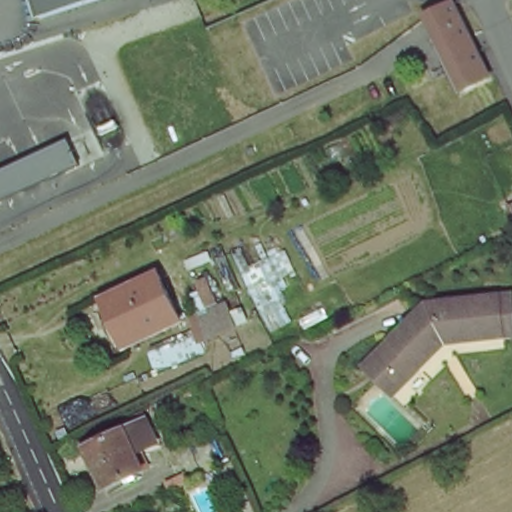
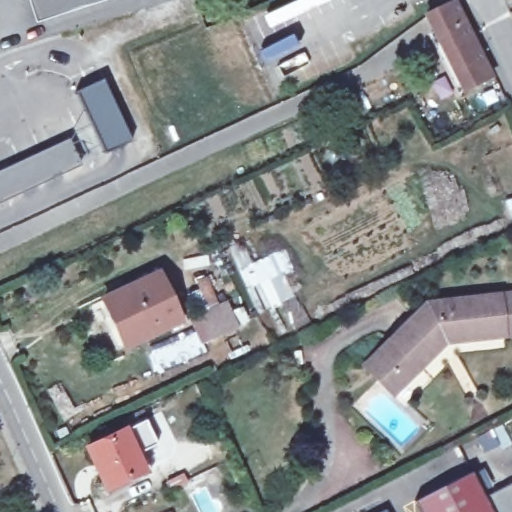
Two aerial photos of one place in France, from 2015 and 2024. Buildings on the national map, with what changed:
unchanged [(36,22),(29,0),(107,0),(36,22)]
unchanged [(464,86),(456,70),(441,35),(434,17),(460,4),(469,23),(484,57),(492,74),(464,86)]
new [(130,140),(105,152),(77,93),(102,81),(130,140)]
unchanged [(83,165),(0,202),(0,172),(70,138),(83,165)]
unchanged [(127,346),(102,296),(158,268),(183,319),(127,346)]
unchanged [(367,360),(377,349),(427,298),(496,288),(512,286),(512,289),(512,328),(502,329),(442,337),(407,376),(395,389),(367,360)]
unchanged [(100,491),(81,450),(116,433),(134,424),(148,452),(134,458),(141,472),(100,491)]
new [(493,494),(512,484),(512,512),(433,512),(425,497),(480,469),(493,494)]

